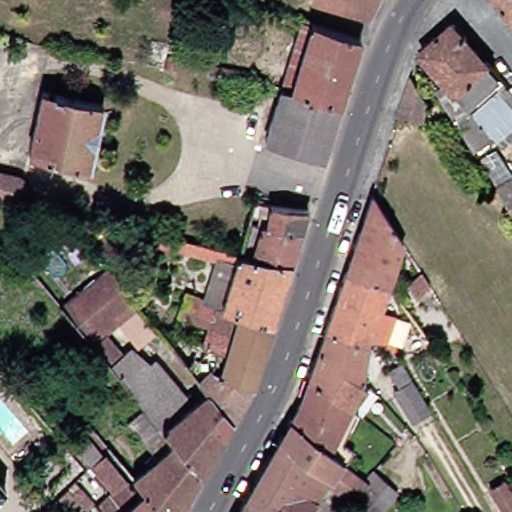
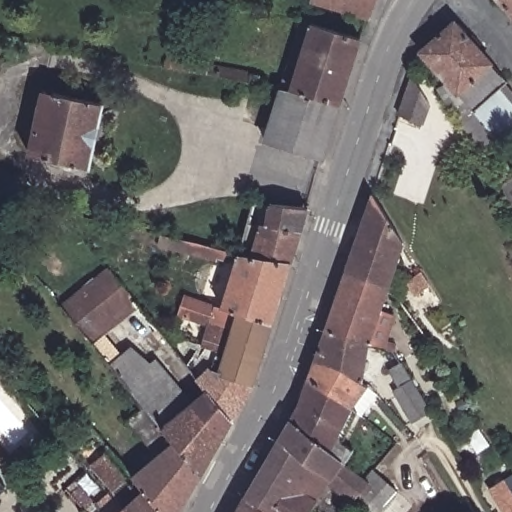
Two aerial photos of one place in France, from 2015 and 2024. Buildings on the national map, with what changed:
unchanged [(308,7),(309,0),(375,0),(366,19),(308,7)]
unchanged [(512,0),(512,27),(489,0),(512,0)]
unchanged [(504,84),(494,94),(512,114),(512,120),(489,139),(418,54),(450,24),(504,84)]
unchanged [(308,34),(360,44),(339,111),(293,101),(308,34)]
unchanged [(253,82),(245,80),(204,71),(206,62),(247,71),(254,73),(253,82)]
unchanged [(408,79),(425,104),(417,124),(395,115),(408,79)]
unchanged [(93,128),(104,131),(96,157),(86,154),(81,174),(22,158),(38,94),(98,109),(93,128)]
unchanged [(322,164),(261,149),(274,97),(293,101),(339,111),(322,164)]
unchanged [(8,202),(0,200),(0,173),(14,177),(8,202)]
unchanged [(512,184),(512,218),(497,194),(512,184)]
unchanged [(383,287),(339,272),(366,194),(399,244),(383,287)]
unchanged [(244,227),(246,218),(250,202),(267,205),(306,214),(299,238),(244,227)]
unchanged [(241,239),(244,227),(299,238),(289,269),(253,261),(258,244),(241,239)]
unchanged [(196,258),(180,254),(158,249),(159,239),(182,244),(236,257),(253,261),(289,269),(270,329),(241,320),(223,314),(233,267),(196,258)]
unchanged [(415,270),(445,317),(429,327),(401,279),(415,270)]
unchanged [(90,345),(60,308),(105,272),(136,308),(160,337),(145,349),(114,325),(90,345)]
unchanged [(339,272),(383,287),(361,342),(320,328),(339,272)]
unchanged [(191,304),(202,308),(223,314),(218,332),(214,331),(208,329),(198,326),(181,321),(183,310),(185,303),(191,304)]
unchanged [(188,371),(193,357),(197,345),(214,349),(218,332),(236,338),(241,320),(270,329),(250,389),(214,369),(211,367),(199,386),(188,371)]
unchanged [(320,328),(361,342),(353,367),(313,349),(320,328)]
unchanged [(313,349),(353,367),(354,367),(356,369),(359,371),(351,383),(361,391),(358,394),(365,400),(359,409),(342,399),(303,377),(313,349)]
unchanged [(414,401),(399,410),(368,358),(382,349),(414,401)]
unchanged [(191,408),(207,395),(231,424),(199,479),(145,412),(125,387),(106,364),(118,354),(122,353),(126,352),(131,353),(134,354),(138,357),(148,368),(155,362),(191,408)]
unchanged [(250,389),(231,424),(207,395),(201,389),(214,369),(250,389)]
unchanged [(292,408),(303,377),(342,399),(332,429),(351,446),(336,461),(287,417),(292,408)]
unchanged [(131,424),(145,412),(199,479),(181,511),(181,512),(156,512),(141,495),(131,482),(148,468),(159,459),(131,424)]
unchanged [(353,474),(373,454),(392,473),(364,502),(352,482),(350,484),(344,492),(318,471),(294,512),(285,512),(276,507),(273,512),(234,512),(263,461),(287,417),(336,461),(353,474)]
unchanged [(78,448),(74,443),(78,439),(83,444),(78,448)]
unchanged [(107,501),(113,497),(90,469),(92,467),(88,461),(96,454),(100,459),(103,457),(138,499),(141,495),(156,512),(118,512),(107,501)]
unchanged [(503,486),(512,501),(512,512),(500,512),(489,494),(503,486)]
unchanged [(53,505),(69,491),(81,504),(73,512),(59,512),(53,505)]
unchanged [(95,511),(107,501),(118,512),(96,512),(95,511)]

